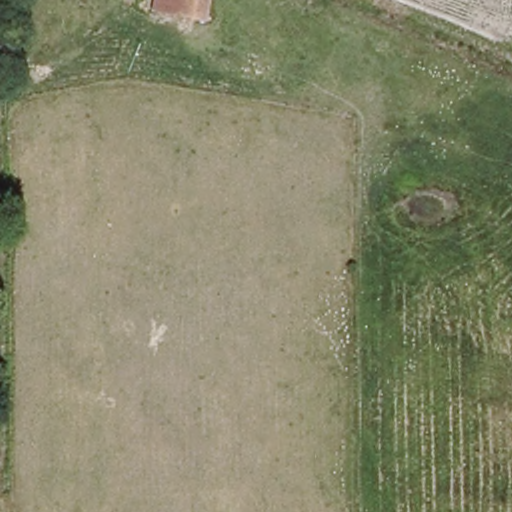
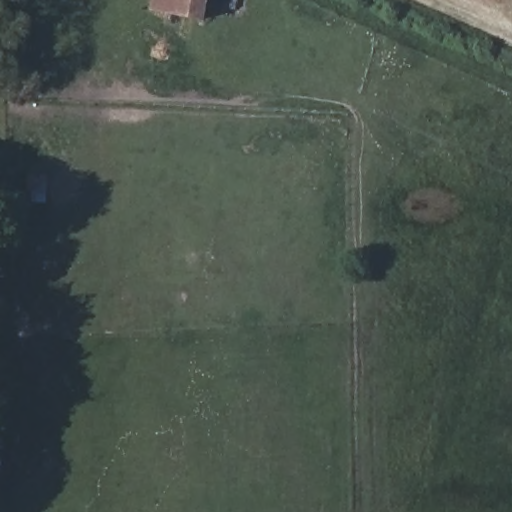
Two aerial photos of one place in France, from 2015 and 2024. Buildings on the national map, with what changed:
unchanged [(152,7),(154,0),(206,0),(204,17),(152,7)]

